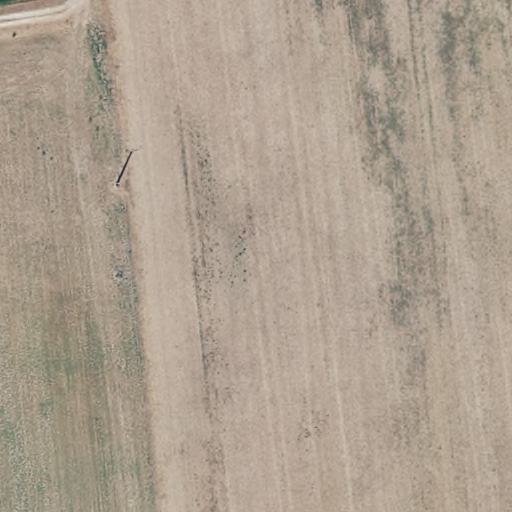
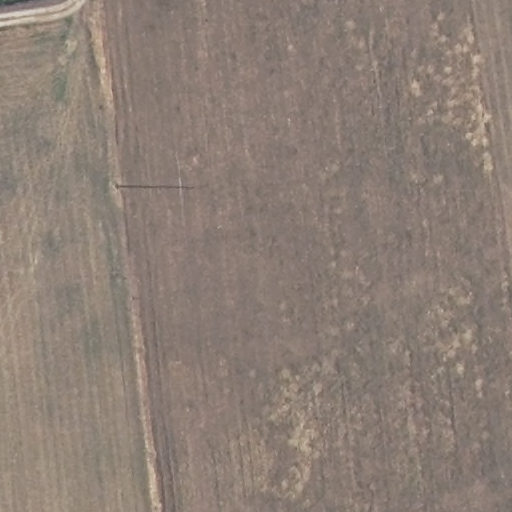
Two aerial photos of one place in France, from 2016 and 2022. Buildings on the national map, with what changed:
[]

